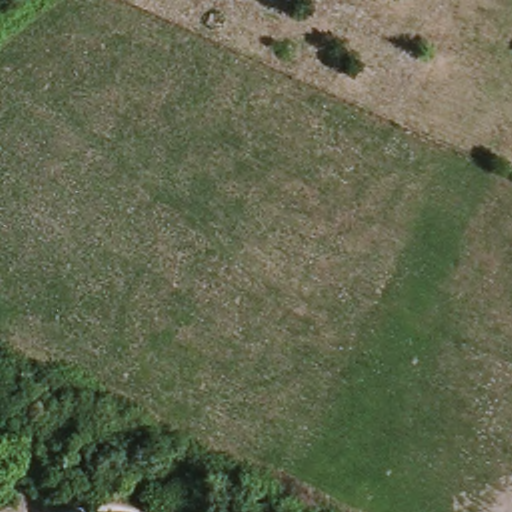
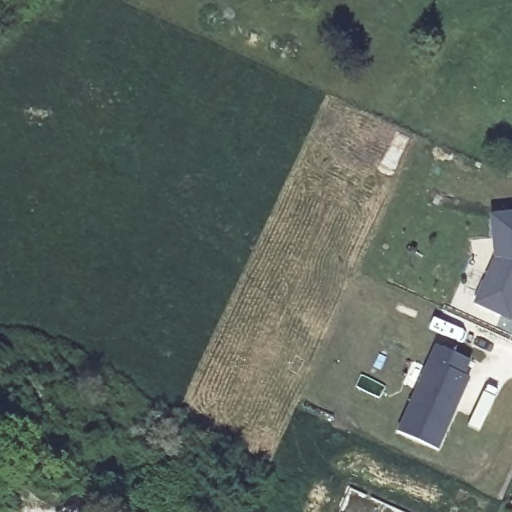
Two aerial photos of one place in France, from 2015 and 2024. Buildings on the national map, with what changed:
new [(475,301),(496,256),(491,214),(512,211),(512,313),(510,316),(475,301)]
new [(434,345),(467,360),(461,375),(466,377),(435,449),(396,431),(434,345)]

